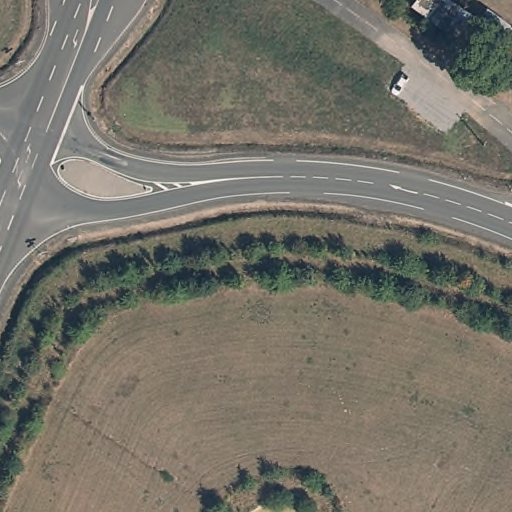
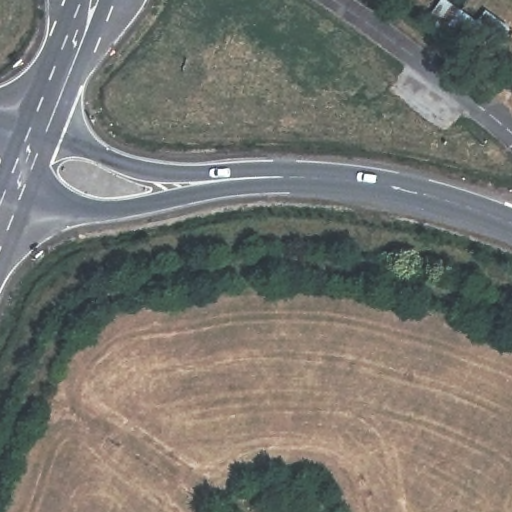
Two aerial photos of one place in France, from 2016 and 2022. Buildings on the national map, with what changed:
unchanged [(487,4),(509,20),(483,55),(414,0),(457,0),(476,16),(487,4)]

